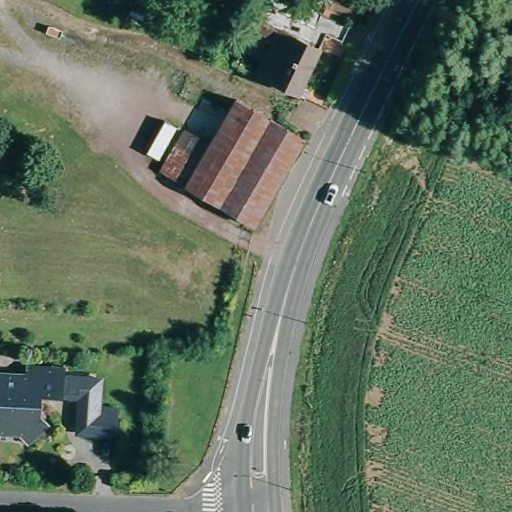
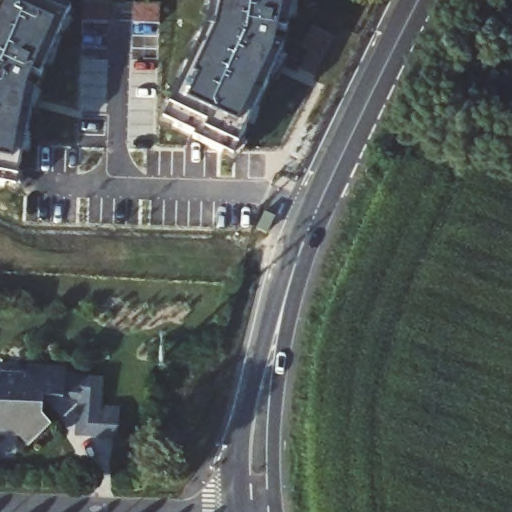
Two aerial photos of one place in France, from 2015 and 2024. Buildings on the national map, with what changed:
new [(15,190),(0,185),(0,0),(22,0),(66,13),(50,67),(38,64),(30,92),(34,93),(15,190)]
new [(234,157),(163,124),(205,32),(212,0),(296,0),(274,46),(284,50),(234,157)]
demolished [(281,34),(263,25),(275,1),(321,25),(329,10),(355,23),(347,38),(331,30),(324,45),(304,34),(281,79),(263,69),(281,34)]
demolished [(304,34),(324,45),(326,46),(301,90),(281,79),(304,34)]
demolished [(210,140),(234,97),(301,134),(251,224),(185,186),(210,140)]
unchanged [(20,438),(0,437),(0,373),(29,373),(29,364),(69,367),(69,378),(103,379),(102,409),(120,409),(118,441),(73,437),(75,405),(63,404),(41,405),(43,415),(51,427),(28,447),(20,438)]

